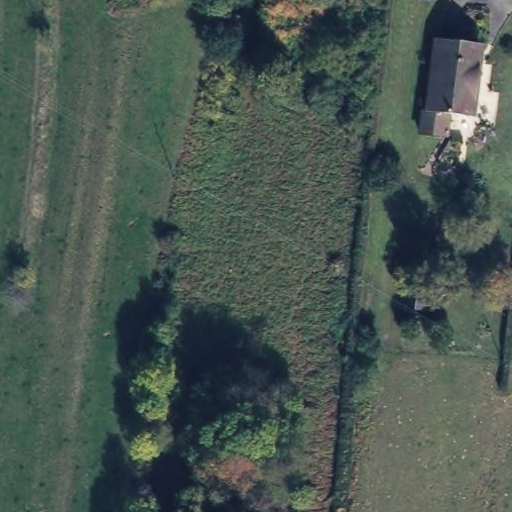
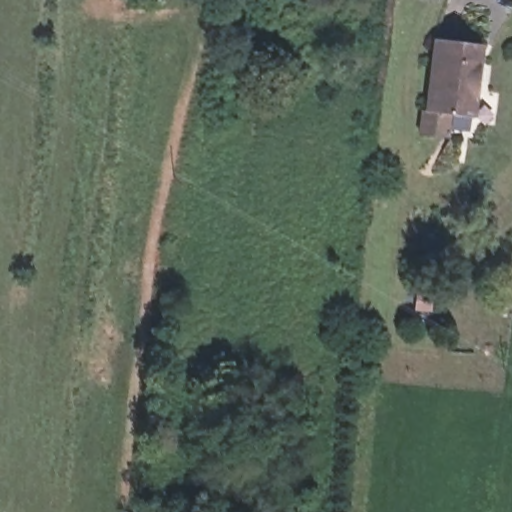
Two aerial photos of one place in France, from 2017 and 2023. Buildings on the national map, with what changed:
unchanged [(481,45),(472,116),(430,112),(438,41),(481,45)]

